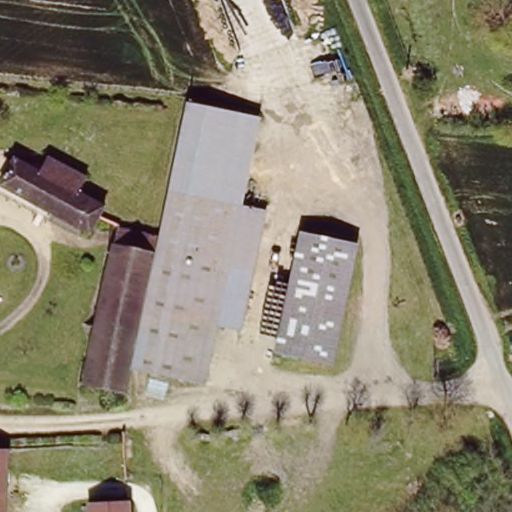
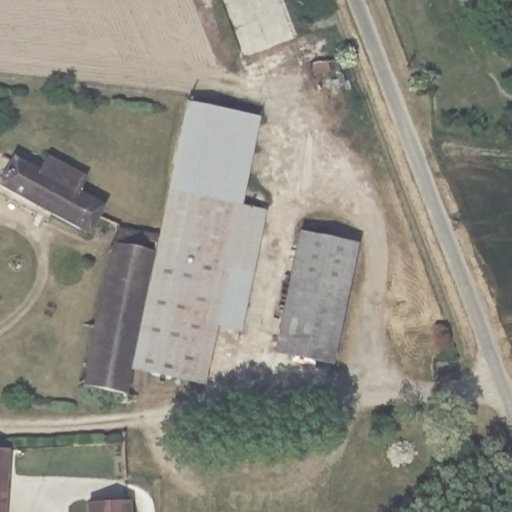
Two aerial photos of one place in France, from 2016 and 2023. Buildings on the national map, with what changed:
unchanged [(170,195),(190,108),(261,123),(242,211),(170,195)]
unchanged [(47,160),(84,180),(77,192),(105,207),(90,235),(1,185),(16,158),(41,172),(47,160)]
unchanged [(242,211),(217,329),(204,388),(132,372),(160,243),(170,195),(242,211)]
unchanged [(242,211),(267,216),(241,334),(217,329),(242,211)]
unchanged [(132,372),(123,417),(80,408),(118,234),(160,243),(132,372)]
unchanged [(358,245),(335,362),(281,352),(303,235),(358,245)]
unchanged [(6,512),(0,512),(0,451),(12,452),(6,512)]
unchanged [(128,502),(129,512),(89,512),(88,504),(128,502)]

